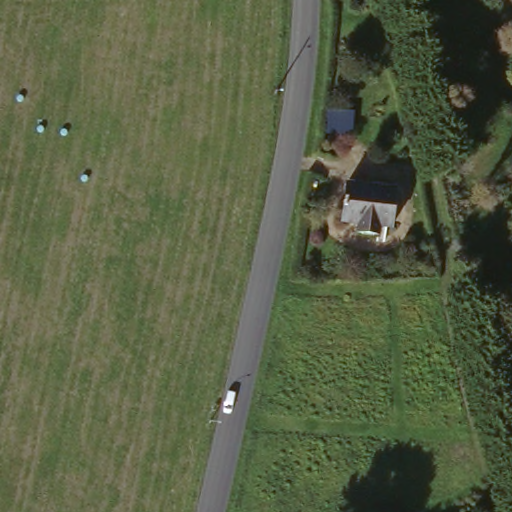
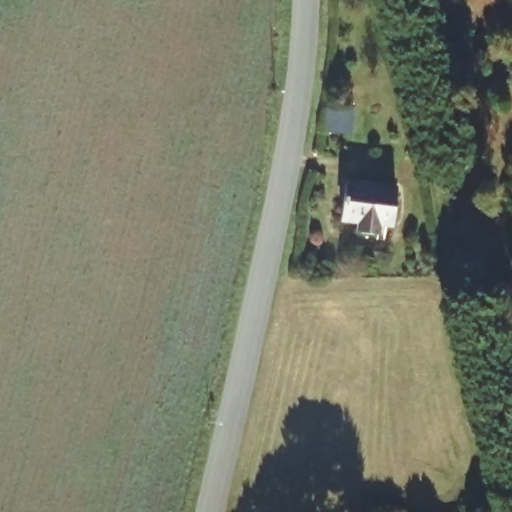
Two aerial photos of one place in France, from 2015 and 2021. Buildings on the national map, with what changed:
unchanged [(386,226),(384,237),(357,234),(357,225),(342,223),(345,183),(392,190),(390,227),(386,226)]

